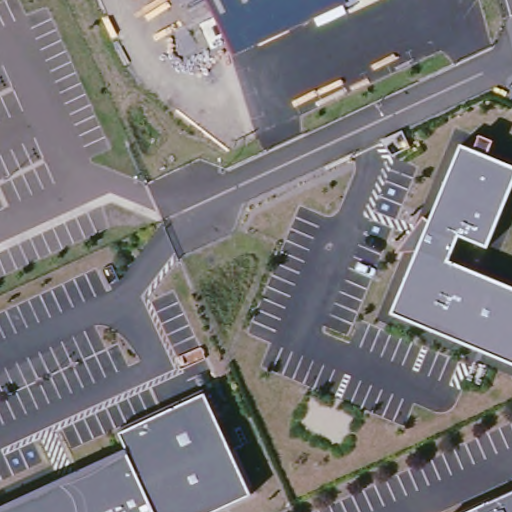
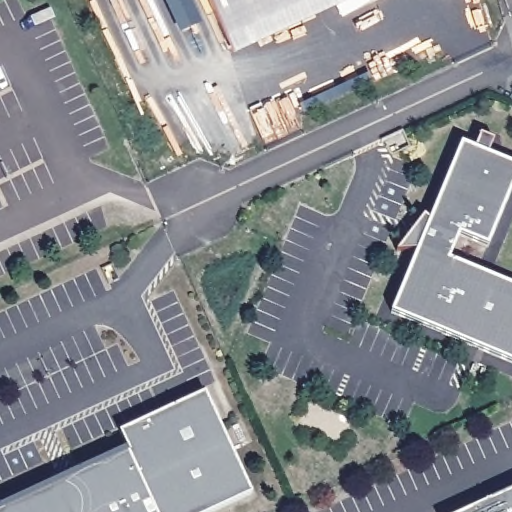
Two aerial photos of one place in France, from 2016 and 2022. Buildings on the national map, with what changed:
unchanged [(350,3),(237,57),(209,0),(349,0),(350,3)]
unchanged [(489,247),(462,236),(451,263),(512,288),(512,361),(393,313),(419,251),(400,252),(427,217),(433,219),(464,146),(477,151),(482,137),(495,143),(489,157),(512,166),(512,197),(489,247)]
unchanged [(0,512),(0,509),(131,451),(123,435),(206,396),(254,495),(217,512),(0,512)]
unchanged [(473,512),(512,495),(512,512),(473,512)]

